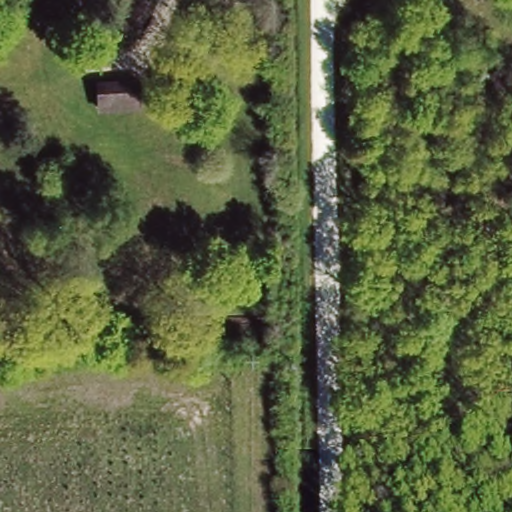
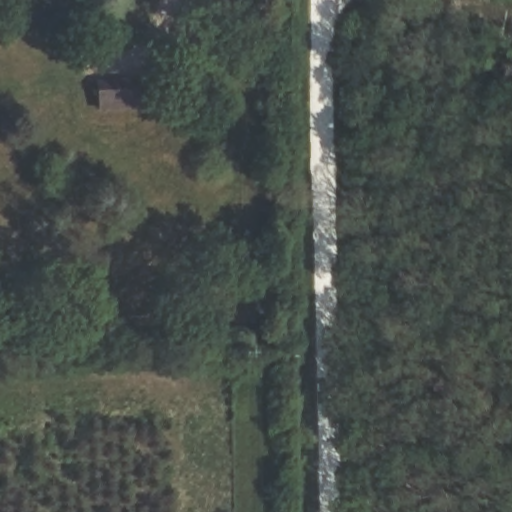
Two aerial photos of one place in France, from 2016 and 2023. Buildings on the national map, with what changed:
unchanged [(140,70),(144,106),(97,111),(95,72),(140,70)]

